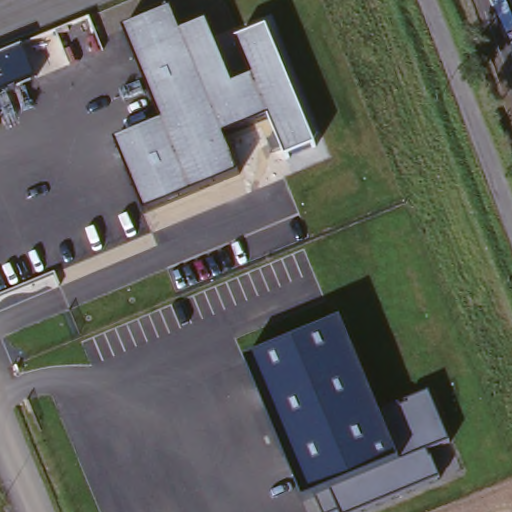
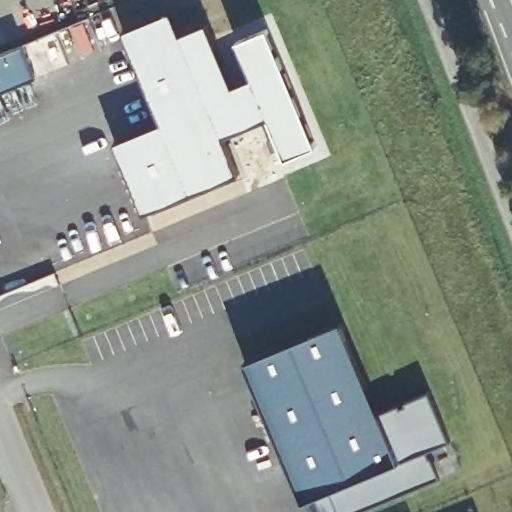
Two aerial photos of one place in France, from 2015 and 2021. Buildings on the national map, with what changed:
unchanged [(287,160),(269,117),(224,135),(239,173),(146,212),(118,142),(164,122),(126,30),(173,11),(181,32),(207,22),(234,86),(253,77),(238,41),(266,28),(316,145),(287,160)]
unchanged [(0,92),(0,54),(21,45),(34,77),(0,92)]
unchanged [(428,451),(439,477),(355,512),(339,512),(338,508),(329,512),(322,512),(314,493),(303,498),(246,360),(343,320),(381,410),(430,393),(451,440),(428,451)]

